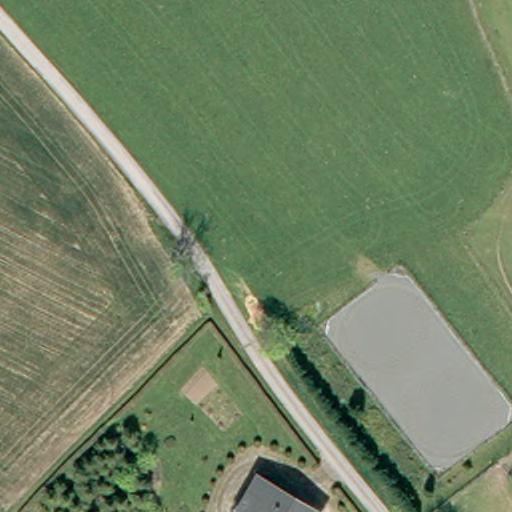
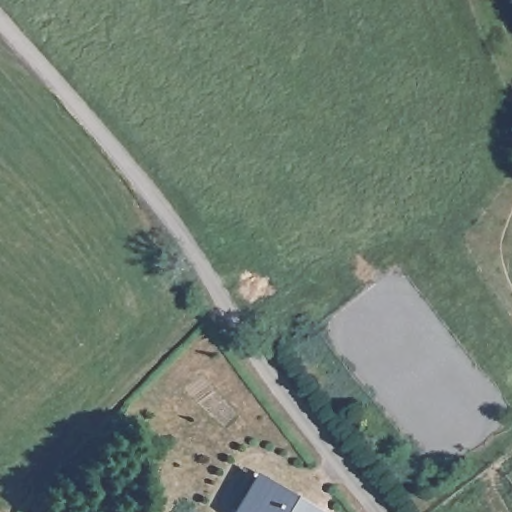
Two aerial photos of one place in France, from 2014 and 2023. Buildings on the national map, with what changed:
unchanged [(310,507),(307,512),(243,512),(235,507),(255,477),(310,507)]

